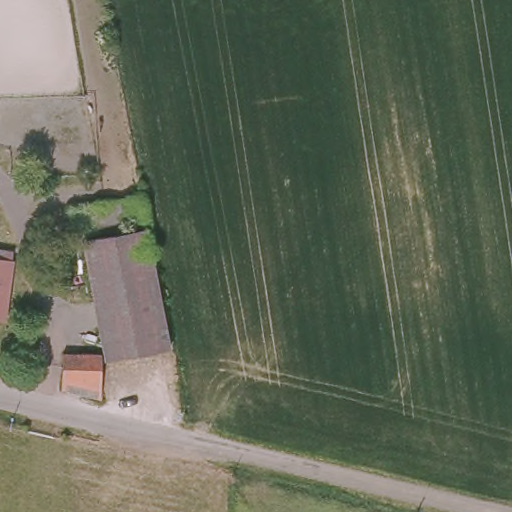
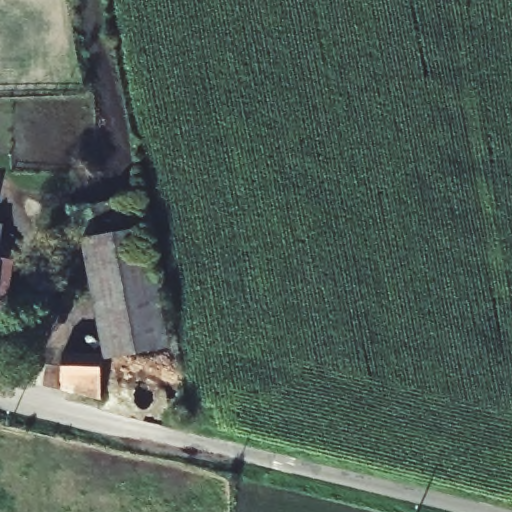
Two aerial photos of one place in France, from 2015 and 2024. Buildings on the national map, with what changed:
unchanged [(80,231),(76,203),(140,195),(145,223),(80,231)]
unchanged [(86,237),(143,225),(163,338),(102,348),(86,237)]
unchanged [(14,251),(8,315),(0,316),(0,250),(14,251)]
unchanged [(96,346),(97,375),(59,374),(57,346),(96,346)]

